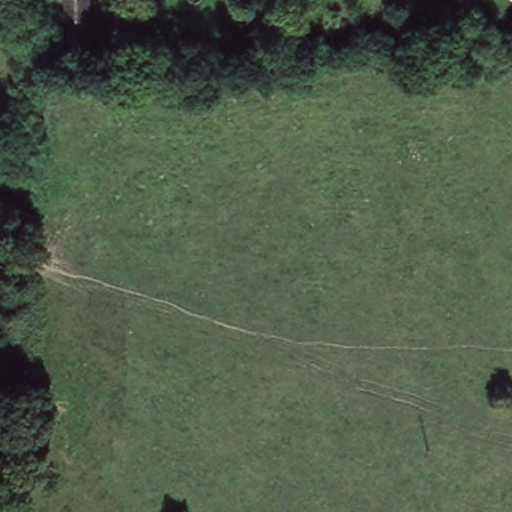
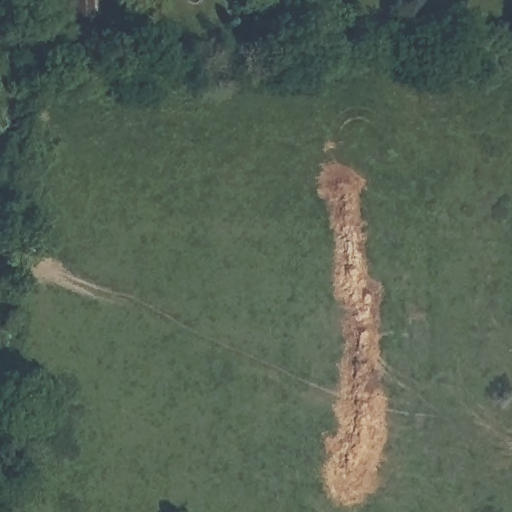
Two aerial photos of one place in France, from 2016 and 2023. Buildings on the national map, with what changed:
unchanged [(62,11),(63,0),(87,0),(86,19),(78,20),(62,20),(62,11)]

